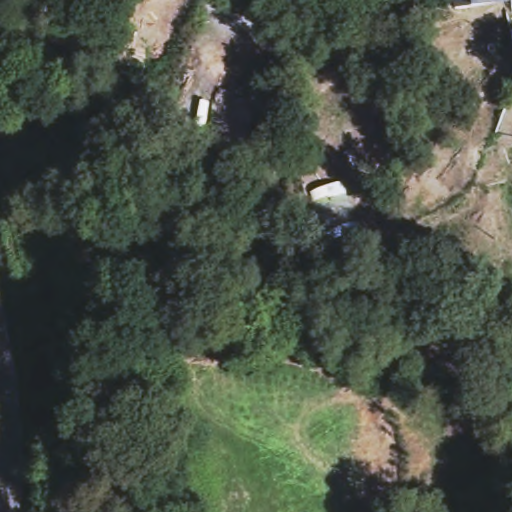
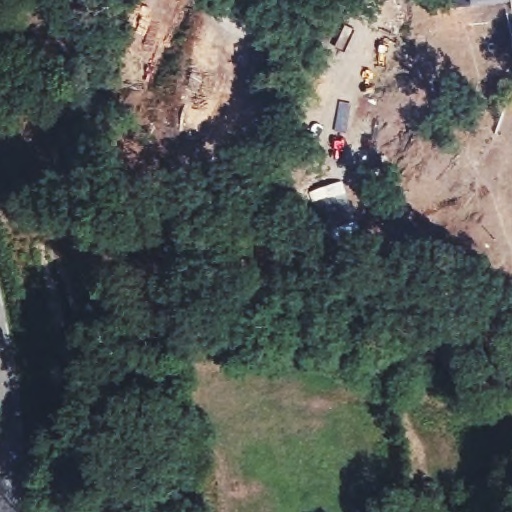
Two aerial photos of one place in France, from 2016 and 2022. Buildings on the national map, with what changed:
unchanged [(465,0),(502,0),(503,6),(466,7),(465,0)]

